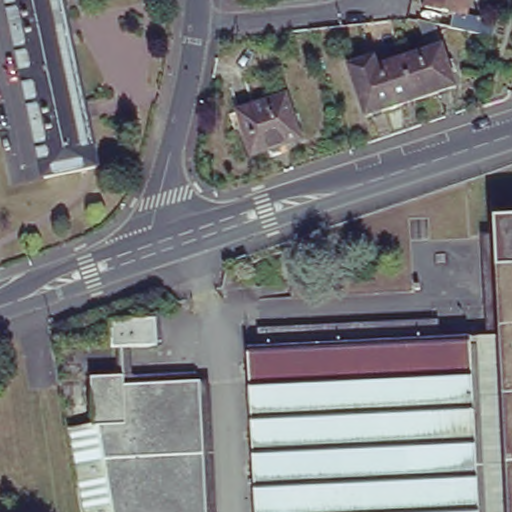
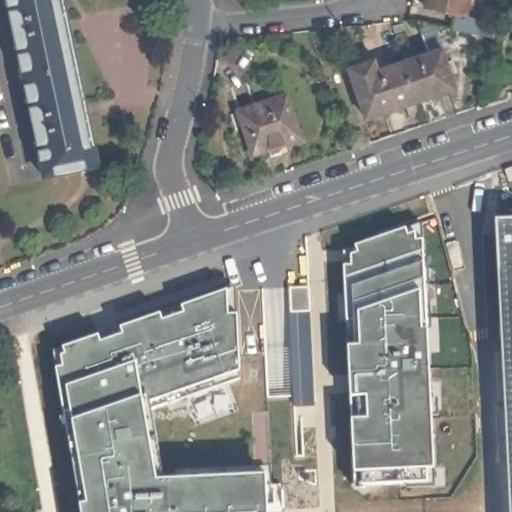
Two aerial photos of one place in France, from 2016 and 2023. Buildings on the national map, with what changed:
unchanged [(6,0),(63,0),(97,164),(43,175),(6,0)]
unchanged [(453,0),(466,0),(497,7),(493,23),(450,14),(453,0)]
unchanged [(456,89),(418,101),(404,61),(428,53),(417,21),(434,25),(456,89)]
unchanged [(366,119),(348,67),(375,59),(379,70),(404,61),(418,101),(366,119)]
unchanged [(237,107),(286,90),(302,137),(253,154),(237,107)]
new [(420,211),(424,322),(431,477),(352,483),(341,238),(420,211)]
unchanged [(508,512),(500,331),(494,215),(512,214),(512,512),(508,512)]
new [(282,481),(281,510),(273,510),(273,512),(84,512),(49,332),(233,273),(236,362),(148,388),(161,465),(266,460),(268,480),(282,481)]
demolished [(112,348),(111,322),(155,320),(156,346),(112,348)]
demolished [(508,512),(256,512),(248,344),(500,331),(508,512)]
demolished [(91,379),(117,378),(124,377),(125,386),(200,382),(207,512),(82,512),(67,430),(92,425),(91,379)]

